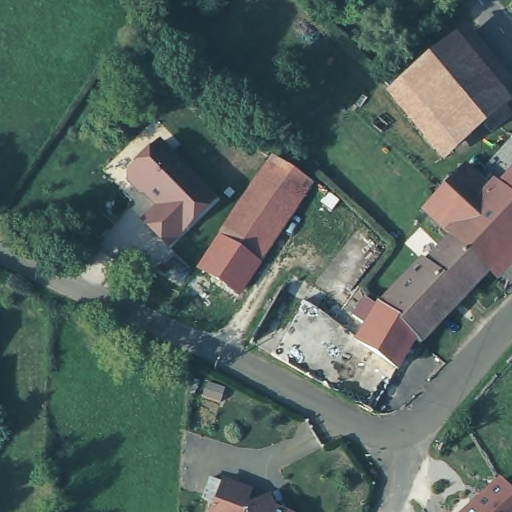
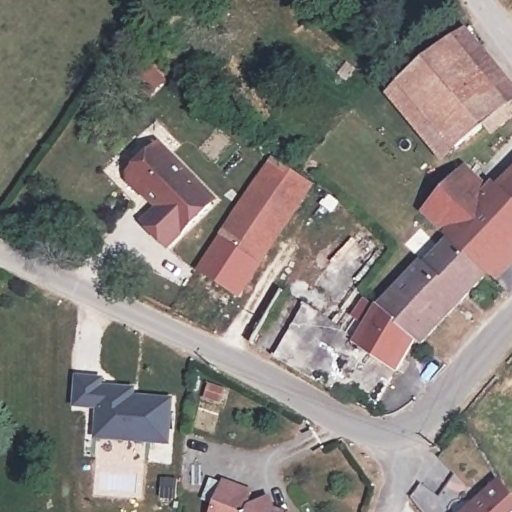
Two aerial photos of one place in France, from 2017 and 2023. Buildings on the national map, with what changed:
unchanged [(406,81),(454,36),(507,95),(506,99),(512,105),(492,124),(485,118),(458,141),(406,81)]
unchanged [(163,140),(221,203),(168,253),(143,223),(152,212),(123,177),(163,140)]
unchanged [(306,188),(243,285),(207,261),(270,165),(306,188)]
unchanged [(440,230),(418,209),(459,166),(480,188),(489,181),(496,189),(512,172),(512,242),(483,273),(440,230)]
unchanged [(355,315),(366,296),(377,307),(380,303),(418,262),(423,264),(435,252),(427,243),(438,232),(442,236),(482,275),(447,312),(417,346),(410,341),(395,370),(356,336),(367,321),(355,315)]
unchanged [(252,340),(282,289),(356,336),(395,370),(370,413),(308,375),(252,340)]
new [(76,378),(101,380),(101,387),(133,389),(132,397),(171,399),(168,443),(96,438),(97,409),(75,406),(76,378)]
unchanged [(249,489),(246,498),(248,503),(259,498),(262,510),(268,511),(271,506),(288,512),(211,512),(222,479),(249,489)]
unchanged [(512,510),(512,512),(467,512),(491,489),(512,510)]

